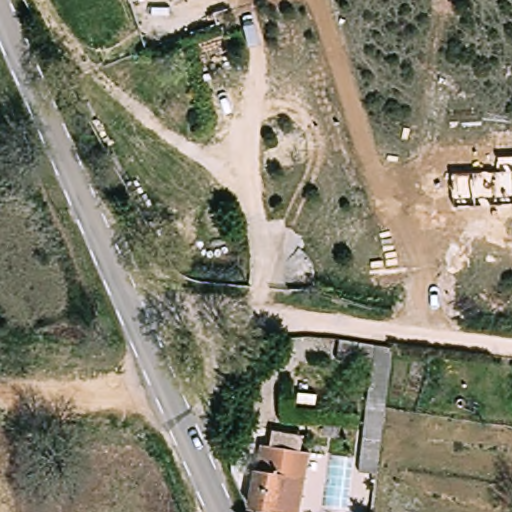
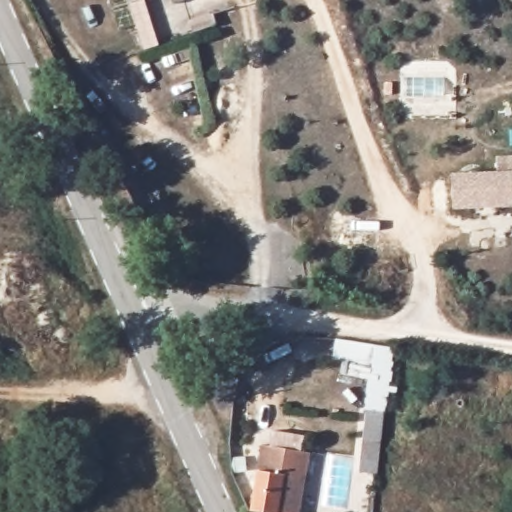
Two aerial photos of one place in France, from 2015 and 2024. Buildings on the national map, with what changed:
unchanged [(132,0),(150,0),(133,5),(132,0)]
unchanged [(181,5),(179,0),(193,0),(193,1),(181,5)]
new [(498,172),(497,157),(512,156),(512,207),(453,209),(451,174),(498,172)]
unchanged [(356,441),(378,441),(370,512),(352,512),(356,441)]
unchanged [(299,512),(246,512),(253,473),(261,447),(307,453),(299,512)]

